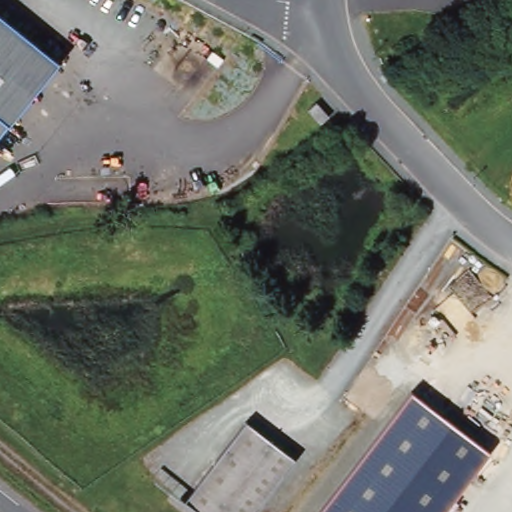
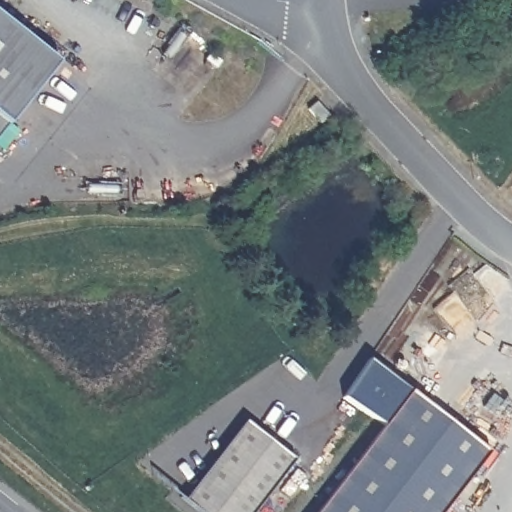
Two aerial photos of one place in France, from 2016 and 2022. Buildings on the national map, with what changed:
unchanged [(6,124),(0,133),(0,15),(57,61),(6,124)]
new [(390,426),(344,396),(370,361),(417,393),(390,426)]
unchanged [(495,456),(450,512),(321,512),(417,393),(495,456)]
unchanged [(300,463),(260,512),(197,512),(186,503),(250,423),(300,463)]

